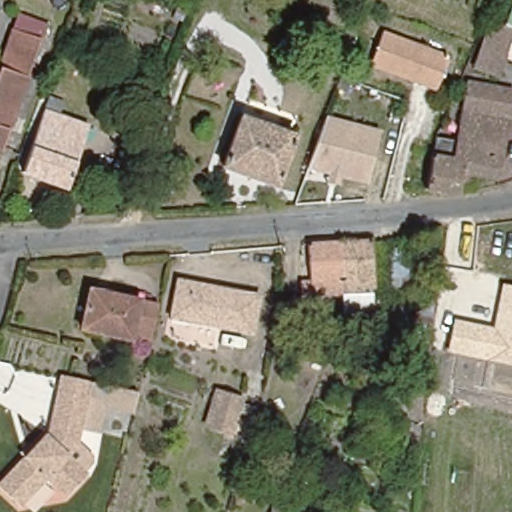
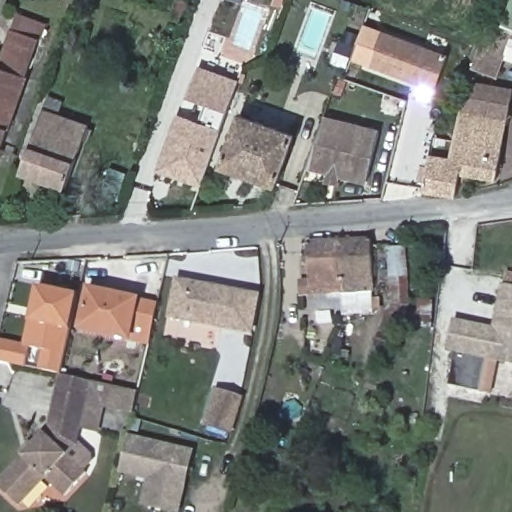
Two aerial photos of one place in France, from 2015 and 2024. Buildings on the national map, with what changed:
unchanged [(501,29),(510,0),(512,0),(512,64),(502,61),(496,78),(472,70),(487,24),(501,29)]
unchanged [(21,15),(49,24),(43,40),(3,149),(0,148),(0,72),(15,31),(21,15)]
unchanged [(434,90),(369,66),(384,32),(446,55),(434,90)]
new [(206,106),(187,99),(198,66),(239,81),(201,187),(156,172),(177,115),(200,122),(206,106)]
unchanged [(420,188),(428,149),(431,145),(434,143),(449,146),(461,82),(508,92),(492,178),(468,173),(465,188),(454,186),(453,194),(420,188)]
unchanged [(70,99),(63,117),(88,126),(66,187),(23,172),(51,92),(70,99)]
unchanged [(297,132),(278,184),(223,165),(242,114),(297,132)]
unchanged [(367,185),(343,179),(341,187),(325,182),(327,175),(305,170),(324,114),(380,128),(367,185)]
unchanged [(369,288),(336,292),(332,241),(366,237),(369,288)]
unchanged [(298,284),(306,283),(303,243),(332,241),(336,292),(307,293),(298,295),(298,284)]
unchanged [(407,275),(408,300),(392,301),(390,277),(407,275)]
unchanged [(264,297),(255,335),(163,316),(172,278),(264,297)]
unchanged [(444,351),(451,319),(492,327),(501,284),(512,286),(512,365),(444,351)]
unchanged [(146,342),(76,326),(85,287),(155,302),(146,342)]
new [(43,353),(26,350),(21,368),(0,363),(0,343),(21,348),(29,320),(36,291),(41,292),(75,300),(58,377),(38,372),(43,353)]
unchanged [(388,345),(387,318),(386,311),(396,310),(398,345),(388,345)]
unchanged [(101,427),(81,422),(74,451),(64,461),(84,479),(64,502),(44,485),(18,512),(17,512),(0,496),(0,487),(45,436),(57,382),(109,396),(101,427)]
unchanged [(249,400),(239,433),(215,427),(225,393),(249,400)]
new [(193,450),(178,512),(144,503),(149,477),(121,470),(129,435),(193,450)]

